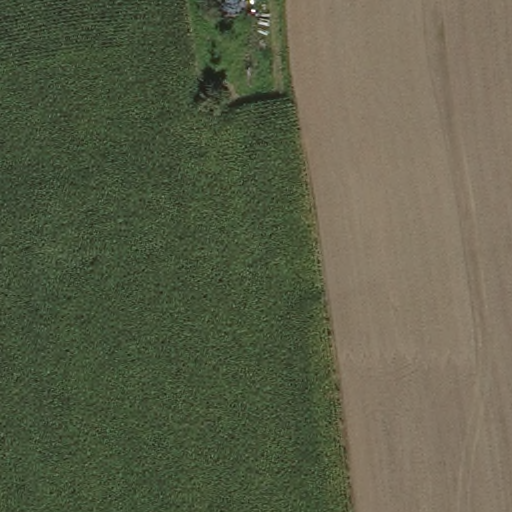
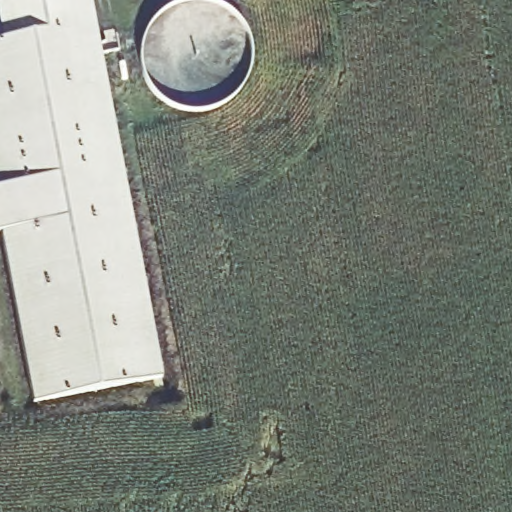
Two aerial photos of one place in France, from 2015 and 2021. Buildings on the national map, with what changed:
new [(161,377),(35,402),(0,227),(0,39),(26,34),(19,0),(87,0),(161,377)]

